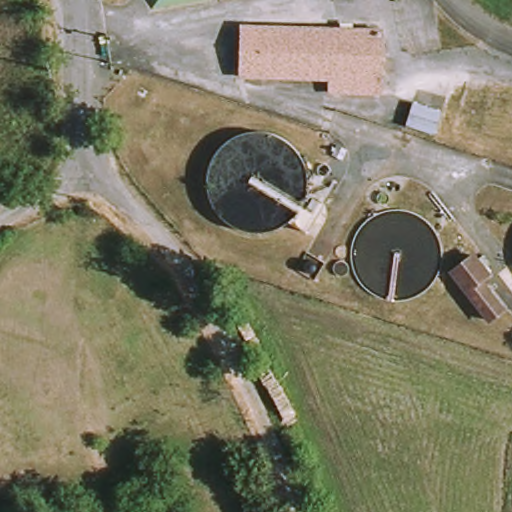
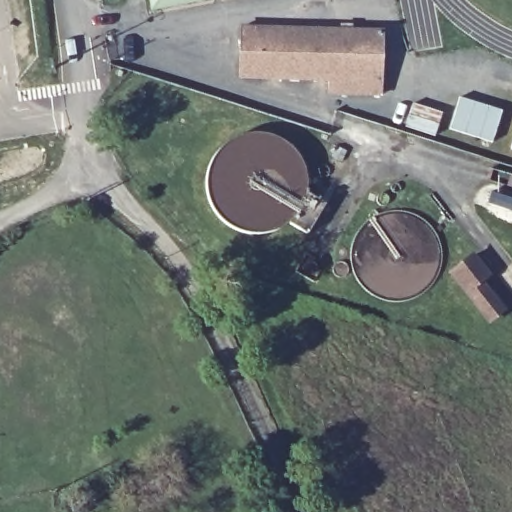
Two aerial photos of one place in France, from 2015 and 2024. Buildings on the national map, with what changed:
unchanged [(156,10),(154,0),(215,0),(156,10)]
demolished [(337,1),(337,0),(342,0),(337,1)]
unchanged [(244,77),(244,29),(331,30),(332,80),(244,77)]
unchanged [(332,91),(332,80),(331,30),(380,31),(380,91),(332,91)]
new [(458,95),(503,109),(492,142),(448,129),(458,95)]
new [(512,150),(509,149),(512,139),(512,150)]
unchanged [(490,321),(454,277),(475,259),(488,277),(482,283),(503,311),(490,321)]
unchanged [(137,507),(131,487),(172,472),(179,492),(137,507)]

